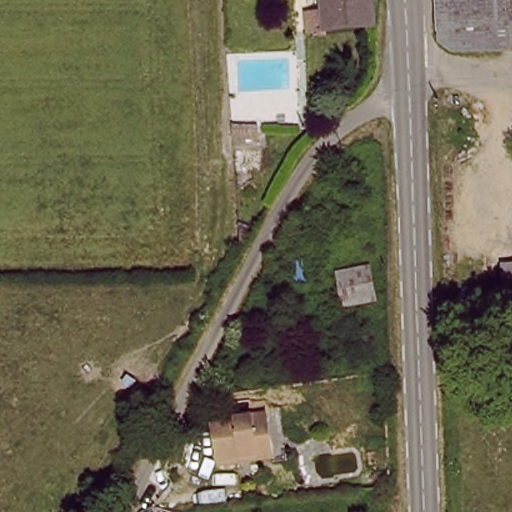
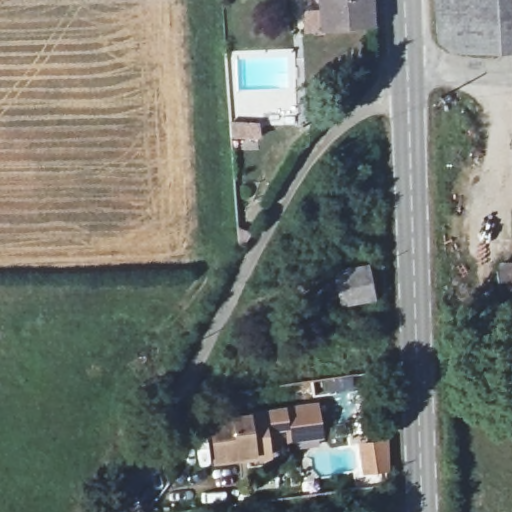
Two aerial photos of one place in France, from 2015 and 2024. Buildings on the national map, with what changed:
unchanged [(374,0),(376,28),(325,31),(323,0),(374,0)]
unchanged [(452,54),(435,38),(433,0),(512,0),(512,52),(452,54)]
unchanged [(502,263),(512,261),(512,295),(500,296),(502,263)]
unchanged [(370,265),(375,302),(340,307),(335,269),(370,265)]
new [(317,403),(323,439),(288,443),(287,432),(275,430),(274,406),(317,403)]
unchanged [(237,460),(213,462),(212,420),(235,417),(235,408),(274,406),(275,443),(275,458),(237,460)]

